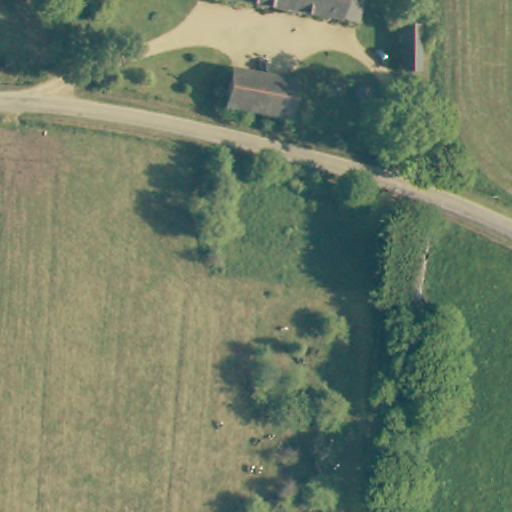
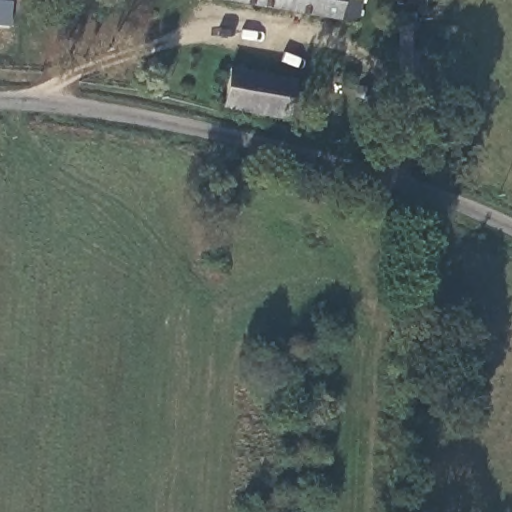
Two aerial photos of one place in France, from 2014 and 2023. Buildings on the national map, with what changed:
new [(9,26),(0,25),(0,0),(11,1),(9,26)]
unchanged [(211,0),(365,0),(361,25),(211,0)]
unchanged [(431,13),(423,70),(408,68),(416,11),(431,13)]
unchanged [(304,79),(301,109),(284,107),(282,120),(255,115),(219,109),(226,69),(304,79)]

